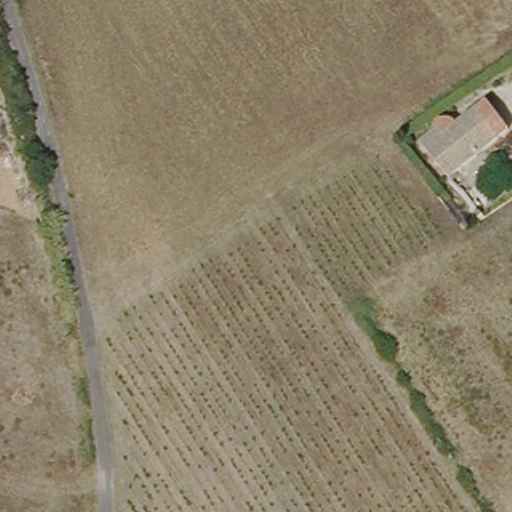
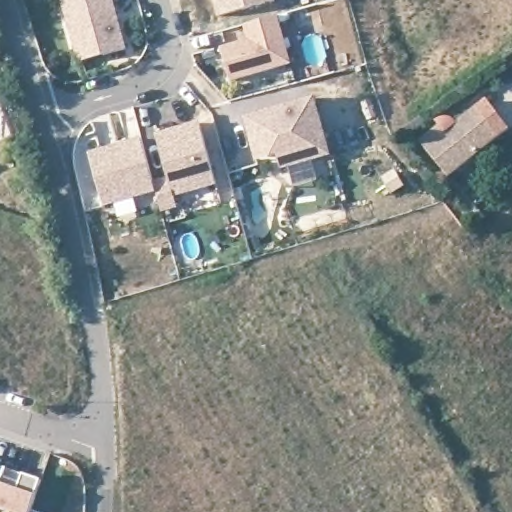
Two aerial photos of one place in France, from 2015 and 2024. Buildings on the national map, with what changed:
new [(63,0),(114,0),(127,48),(78,62),(60,1),(63,0)]
new [(212,0),(275,0),(216,16),(212,0)]
new [(247,39),(243,25),(278,15),(291,63),(230,81),(220,47),(247,39)]
new [(256,151),(248,118),(320,101),(331,148),(333,159),(322,162),(284,171),(280,157),(271,159),(259,162),(256,151)]
unchanged [(457,121),(488,101),(510,131),(446,173),(418,142),(454,118),(457,121)]
new [(174,197),(176,206),(161,210),(157,192),(104,207),(88,153),(142,138),(153,180),(168,176),(156,134),(198,121),(217,187),(174,197)]
new [(0,508),(0,466),(42,480),(31,511),(33,512),(10,512),(0,508)]

